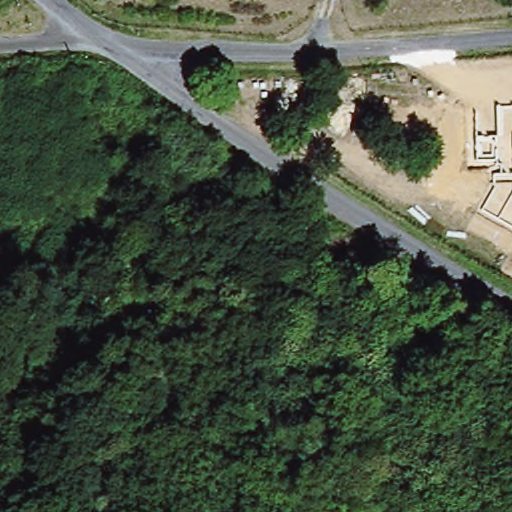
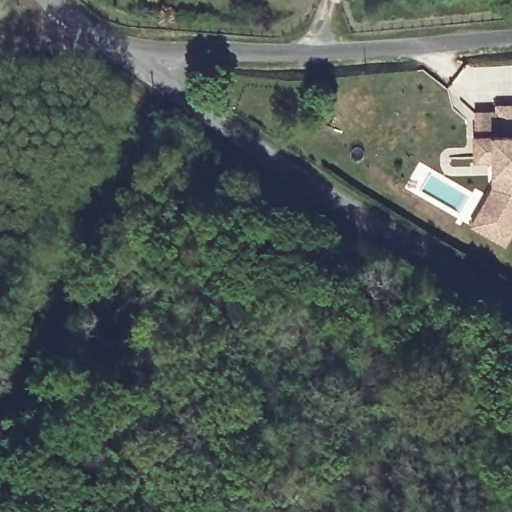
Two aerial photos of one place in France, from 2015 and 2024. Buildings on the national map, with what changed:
new [(496,106),(512,105),(512,237),(507,245),(472,224),(493,188),(492,163),(475,163),(474,111),(496,110),(496,106)]

